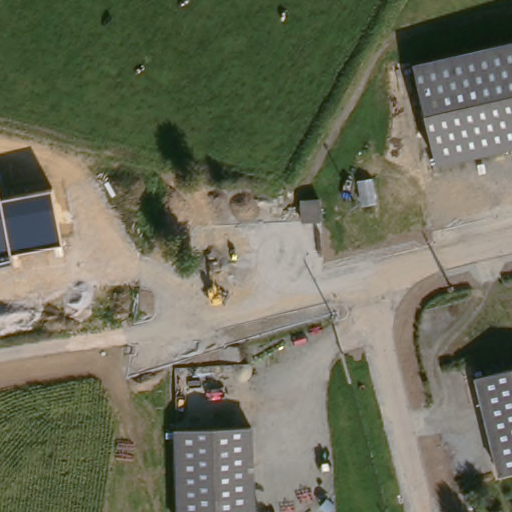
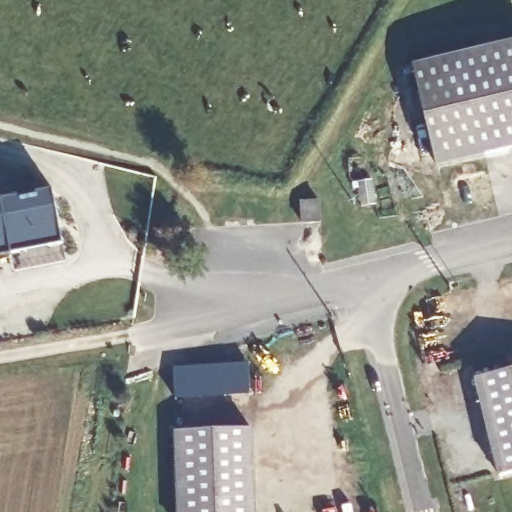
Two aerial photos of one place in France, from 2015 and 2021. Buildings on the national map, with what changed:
unchanged [(512,40),(512,141),(443,157),(418,62),(512,40)]
unchanged [(52,191),(62,244),(0,256),(0,194),(1,201),(52,191)]
unchanged [(305,199),(326,199),(326,220),(305,220),(305,199)]
new [(176,398),(175,367),(250,363),(251,393),(176,398)]
unchanged [(512,369),(512,469),(502,472),(475,378),(512,369)]
unchanged [(178,433),(252,432),(256,512),(181,512),(178,433)]

